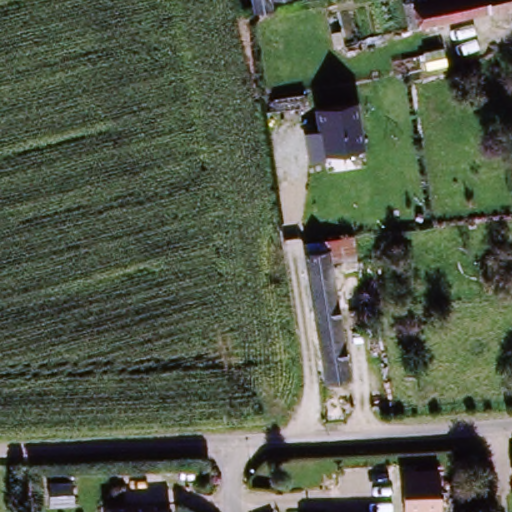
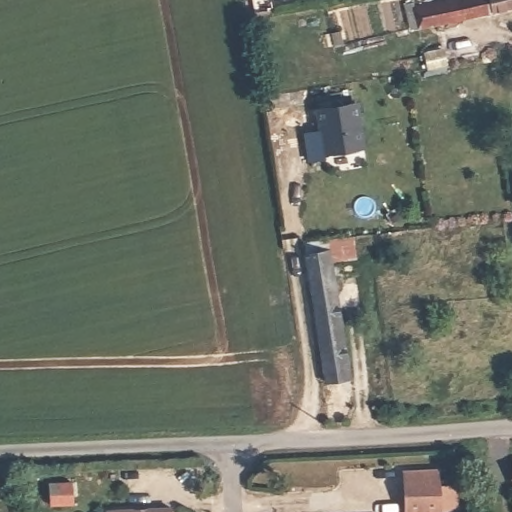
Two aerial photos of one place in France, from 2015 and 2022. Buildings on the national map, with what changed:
unchanged [(414,10),(458,0),(512,0),(512,9),(418,31),(414,10)]
unchanged [(363,148),(324,155),(325,163),(312,165),(307,131),(318,130),(315,111),(357,103),(363,148)]
unchanged [(329,246),(349,375),(321,377),(300,253),(329,246)]
unchanged [(402,470),(437,469),(440,512),(403,512),(402,470)]
unchanged [(507,475),(512,475),(512,492),(505,492),(507,475)]
unchanged [(155,507),(172,505),(173,512),(156,512),(155,507)]
unchanged [(107,509),(125,508),(126,512),(107,512),(107,509)]

